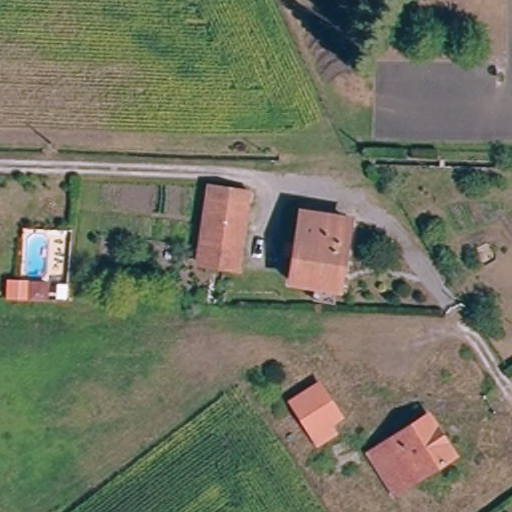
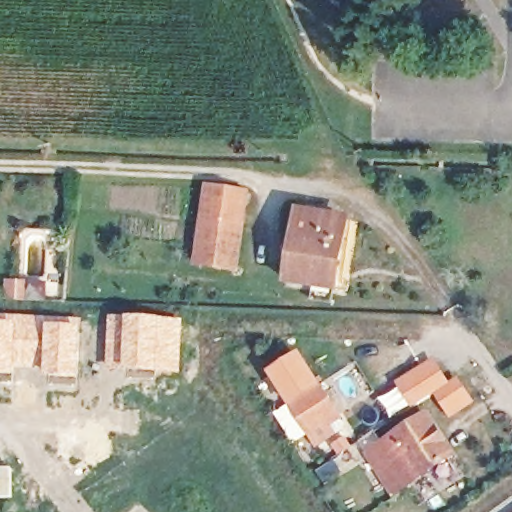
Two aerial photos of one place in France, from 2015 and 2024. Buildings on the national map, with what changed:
unchanged [(238,276),(203,272),(210,193),(248,197),(238,276)]
unchanged [(338,294),(293,289),(300,220),(346,224),(338,294)]
new [(3,279),(28,279),(27,300),(2,300),(3,279)]
new [(80,380),(43,378),(44,371),(15,369),(15,377),(0,376),(0,314),(83,319),(80,380)]
new [(107,314),(184,319),(180,375),(104,369),(107,314)]
new [(317,448),(289,408),(269,374),(301,351),(324,388),(344,421),(333,428),(338,436),(317,448)]
new [(452,420),(434,395),(414,409),(397,382),(435,359),(451,383),(460,379),(476,403),(452,420)]
demolished [(276,408),(308,387),(330,421),(316,430),(297,442),(276,408)]
unchanged [(452,464),(409,493),(405,488),(390,497),(369,466),(384,457),(381,453),(427,425),(452,464)]

